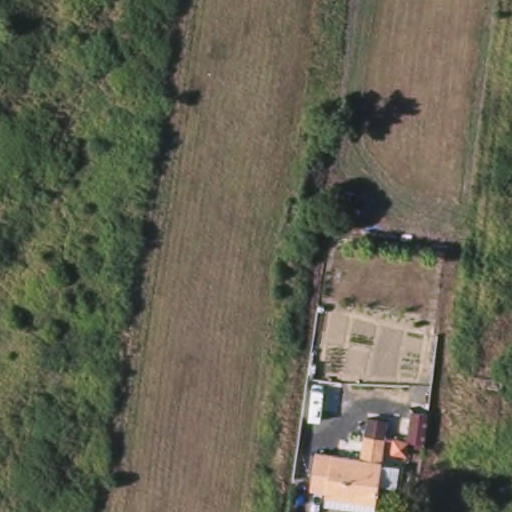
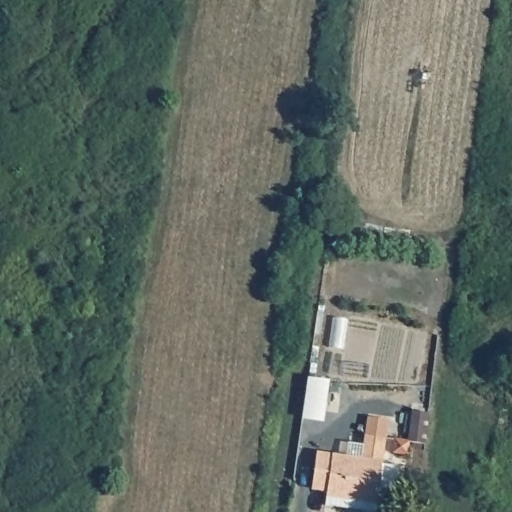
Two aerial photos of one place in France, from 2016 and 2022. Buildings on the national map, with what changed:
unchanged [(320,502),(321,492),(322,486),(307,484),(312,450),(363,458),(367,433),(387,436),(380,485),(371,484),(368,498),(366,510),(320,502)]

